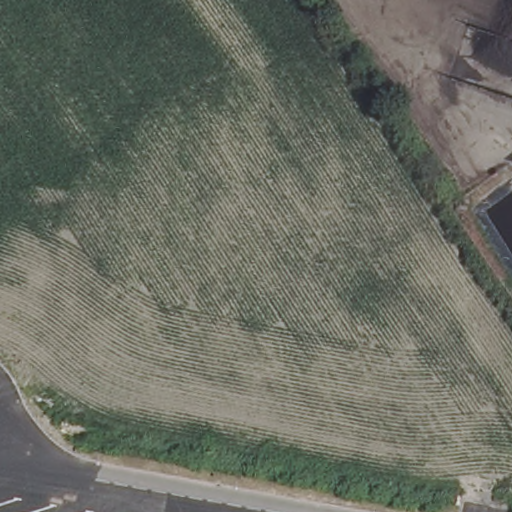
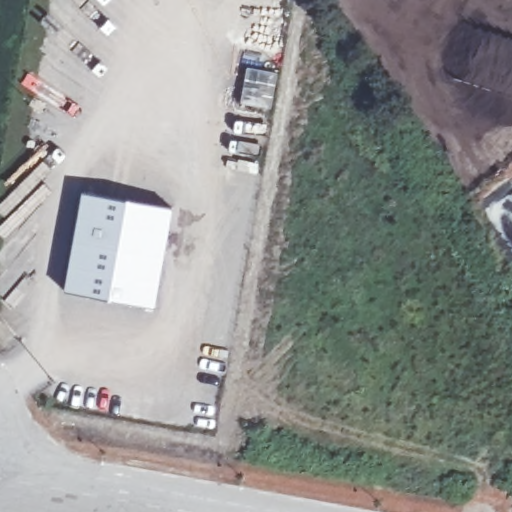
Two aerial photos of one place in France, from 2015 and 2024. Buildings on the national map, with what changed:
new [(79,190),(173,206),(154,306),(63,289),(79,190)]

